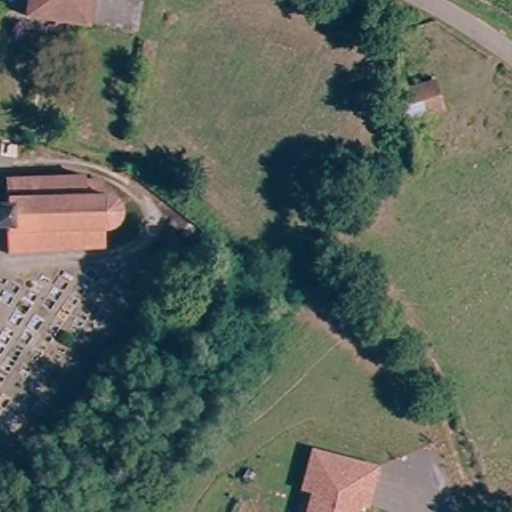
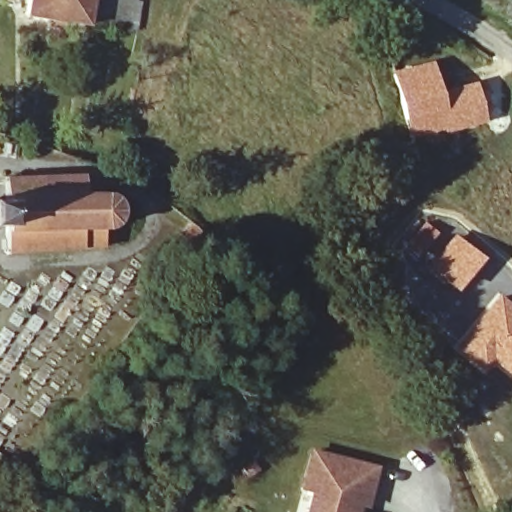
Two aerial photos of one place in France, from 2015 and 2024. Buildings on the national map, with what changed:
unchanged [(39,0),(129,0),(129,2),(141,3),(139,30),(38,12),(39,0)]
new [(433,59),(441,88),(478,80),(486,124),(413,143),(405,122),(392,71),(433,59)]
unchanged [(83,173),(83,179),(91,179),(92,178),(103,178),(103,193),(118,193),(124,201),(128,214),(119,225),(108,225),(106,246),(9,245),(9,227),(0,227),(0,196),(6,195),(6,174),(83,173)]
new [(484,258),(454,292),(423,267),(402,248),(425,220),(442,235),(432,247),(436,251),(453,233),(484,258)]
new [(499,291),(512,303),(512,379),(492,363),(483,373),(452,347),(499,291)]
unchanged [(314,489),(304,487),(313,450),(377,465),(368,501),(358,499),(355,512),(308,512),(314,489)]

